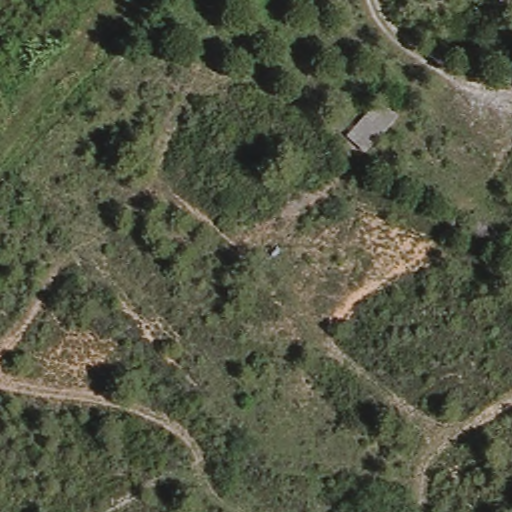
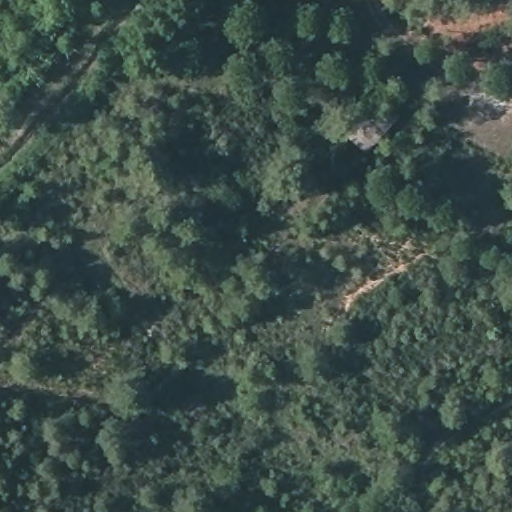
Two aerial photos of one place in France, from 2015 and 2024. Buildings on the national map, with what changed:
unchanged [(369,123),(385,104),(399,116),(384,134),(369,123)]

